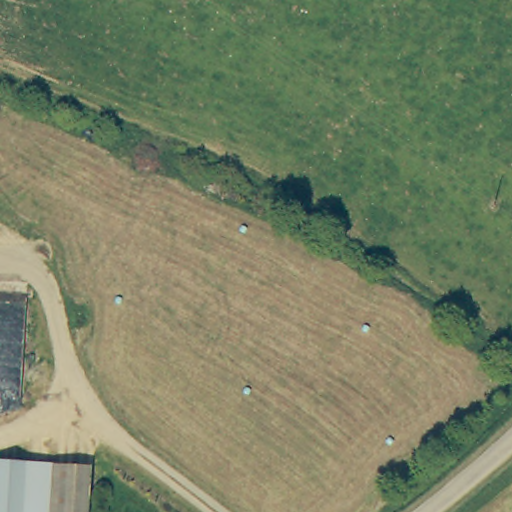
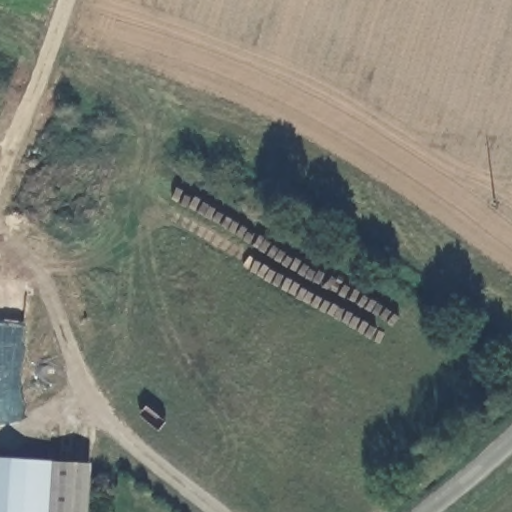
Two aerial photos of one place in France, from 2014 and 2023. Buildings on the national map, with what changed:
unchanged [(79,467),(77,512),(0,512),(0,463),(79,467)]

